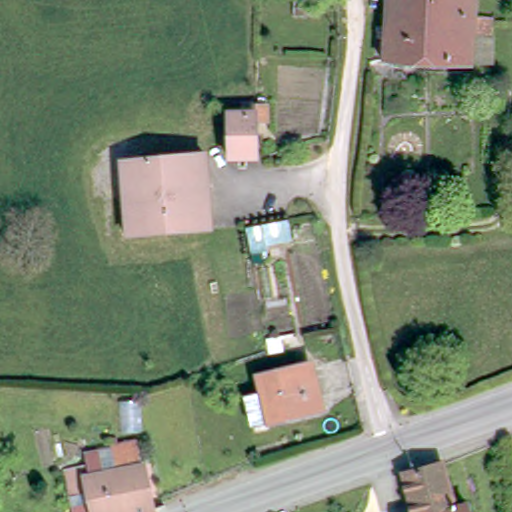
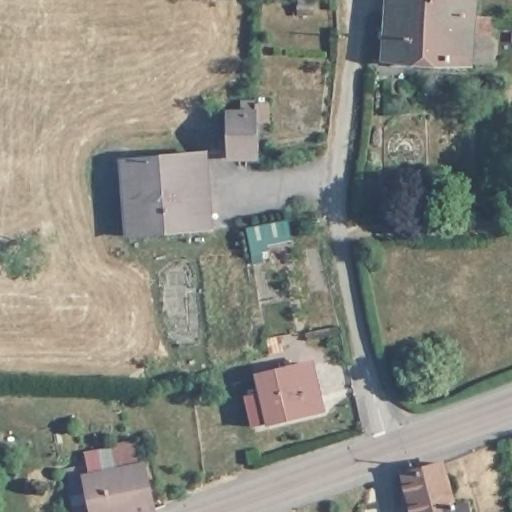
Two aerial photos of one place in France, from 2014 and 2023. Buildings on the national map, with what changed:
unchanged [(313,0),(312,10),(300,9),(300,0),(313,0)]
unchanged [(465,70),(452,69),(377,64),(378,42),(372,42),(373,34),(379,34),(380,16),(381,0),(470,0),(469,24),(485,26),(484,42),(487,42),(486,69),(465,67),(465,70)]
unchanged [(255,109),(255,112),(267,114),(266,129),(254,129),(252,169),(227,167),(230,122),(240,122),(241,108),(255,109)]
unchanged [(133,239),(132,222),(111,224),(107,183),(129,181),(127,165),(210,156),(216,231),(133,239)]
unchanged [(265,238),(266,245),(249,246),(244,219),(289,212),(291,236),(265,238)]
unchanged [(255,381),(305,368),(316,415),(266,427),(255,381)]
unchanged [(87,512),(80,512),(72,467),(86,463),(87,471),(120,466),(116,446),(140,441),(147,483),(152,507),(122,512),(94,512),(94,511),(87,512)]
unchanged [(393,477),(432,467),(447,512),(457,508),(458,512),(404,512),(393,477)]

